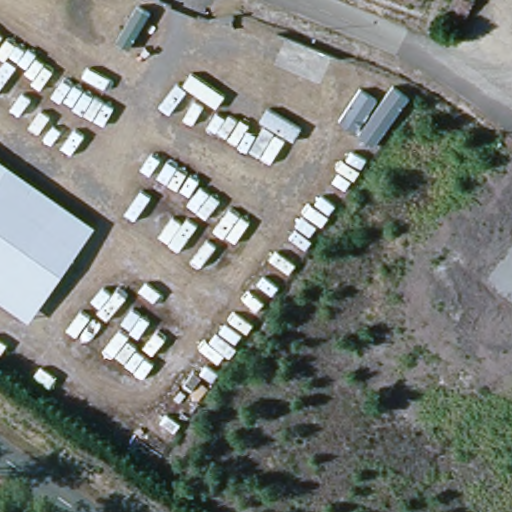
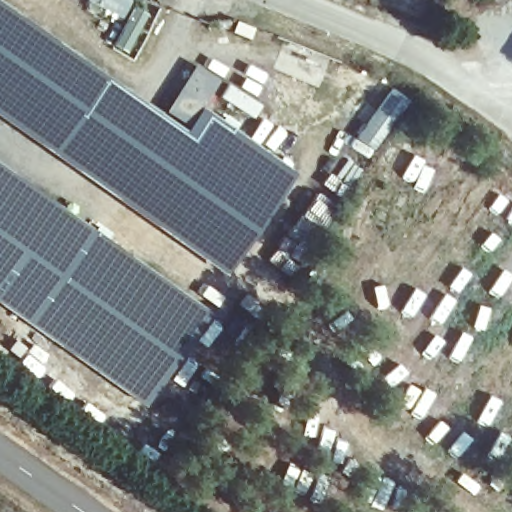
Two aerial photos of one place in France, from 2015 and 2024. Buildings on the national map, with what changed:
new [(194,63),(220,79),(202,107),(297,173),(225,275),(0,117),(0,0),(162,113),(194,63)]
new [(123,18),(88,0),(132,0),(123,18)]
new [(147,13),(127,50),(114,43),(129,15),(141,9),(147,13)]
new [(372,149),(356,138),(392,87),(408,99),(372,149)]
unchanged [(32,323),(0,301),(0,162),(97,231),(32,323)]
new [(212,312),(144,407),(32,326),(32,323),(97,231),(212,312)]

